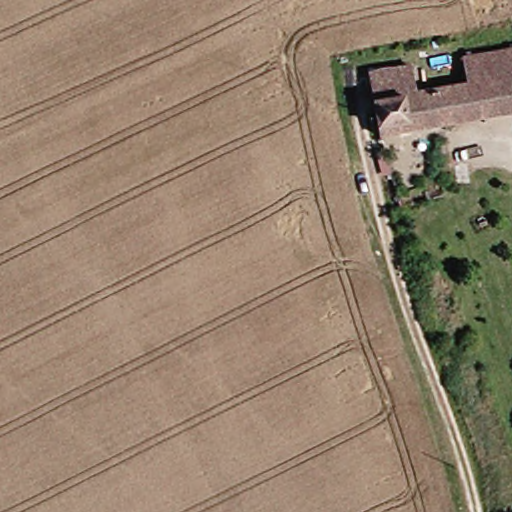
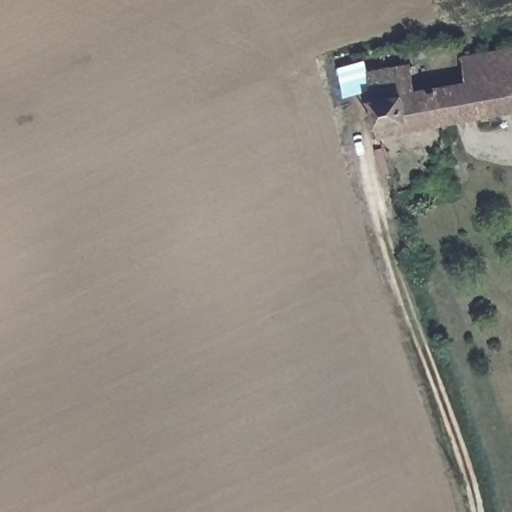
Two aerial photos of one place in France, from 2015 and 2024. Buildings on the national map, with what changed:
unchanged [(457,79),(512,69),(512,104),(370,129),(361,97),(407,88),(457,79)]
unchanged [(417,219),(427,255),(416,258),(405,223),(417,219)]

